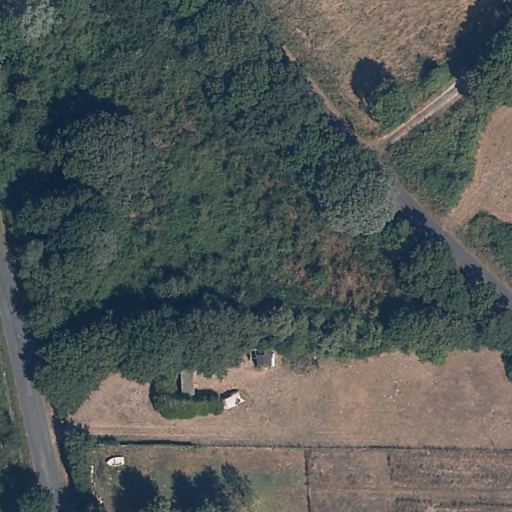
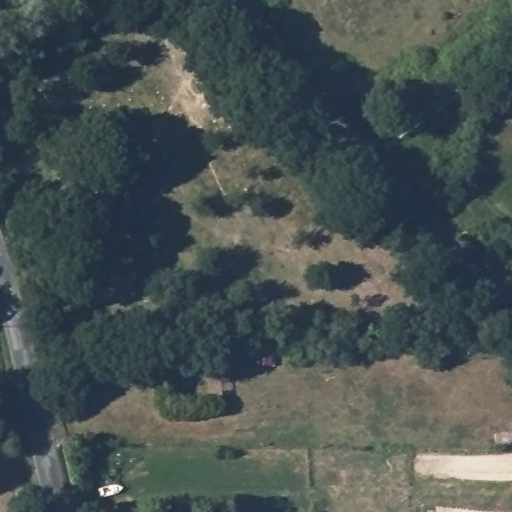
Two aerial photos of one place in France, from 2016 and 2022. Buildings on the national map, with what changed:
[]

